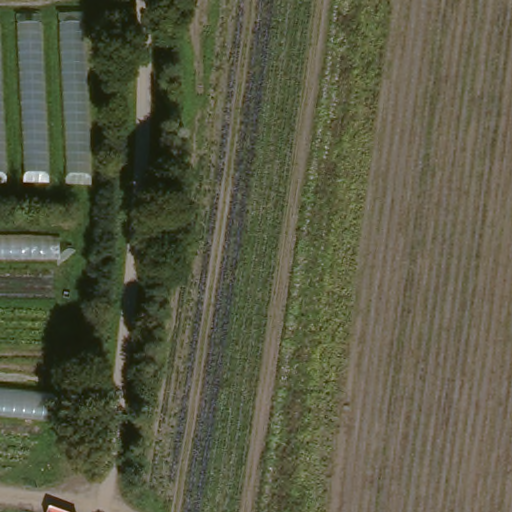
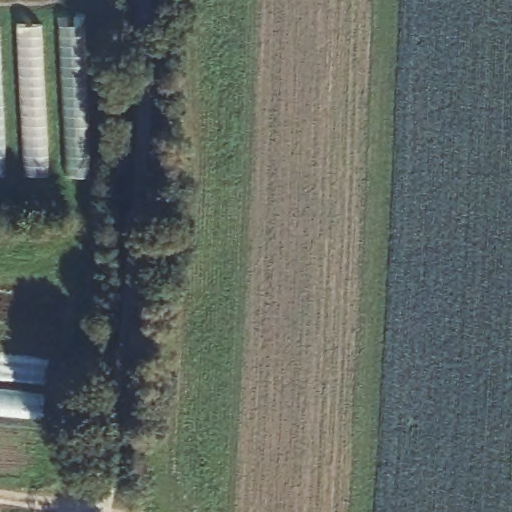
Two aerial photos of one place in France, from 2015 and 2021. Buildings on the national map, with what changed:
unchanged [(40,13),(49,174),(24,176),(20,15),(40,13)]
unchanged [(87,13),(92,176),(68,176),(59,18),(87,13)]
unchanged [(6,14),(7,174),(0,173),(0,14),(6,14)]
unchanged [(61,261),(0,261),(0,236),(61,236),(61,261)]
unchanged [(52,423),(0,417),(0,389),(55,394),(52,423)]

